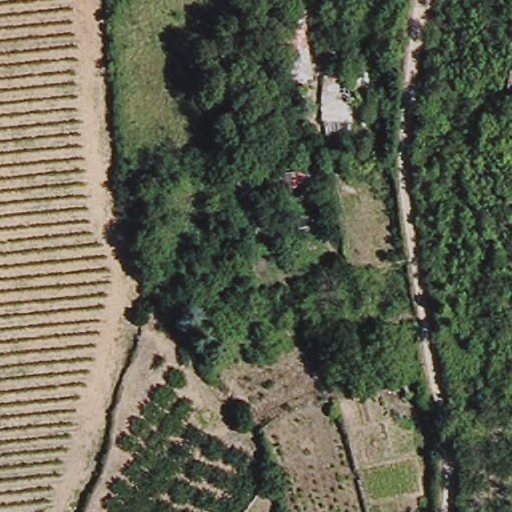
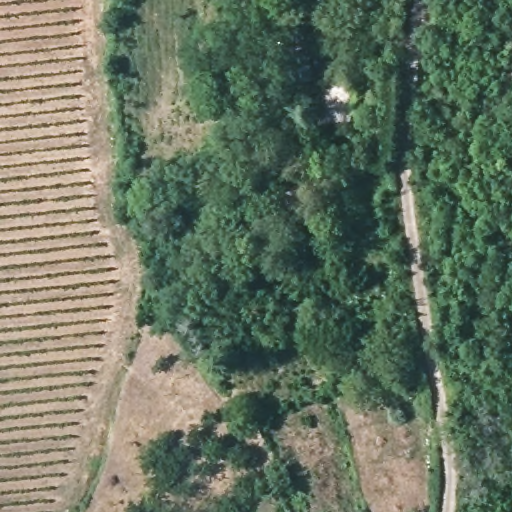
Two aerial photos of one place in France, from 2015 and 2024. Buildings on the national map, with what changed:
unchanged [(357,84),(352,126),(320,125),(327,80),(357,84)]

